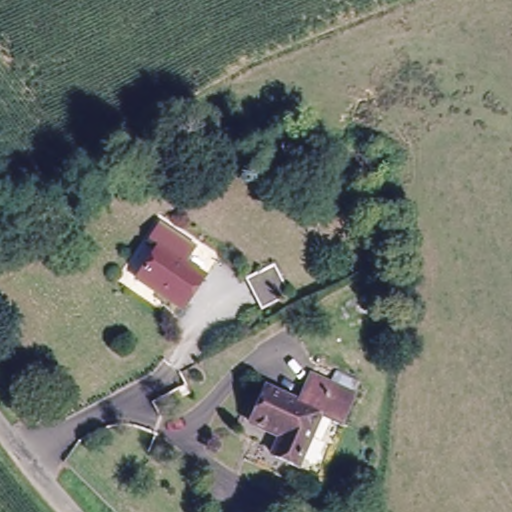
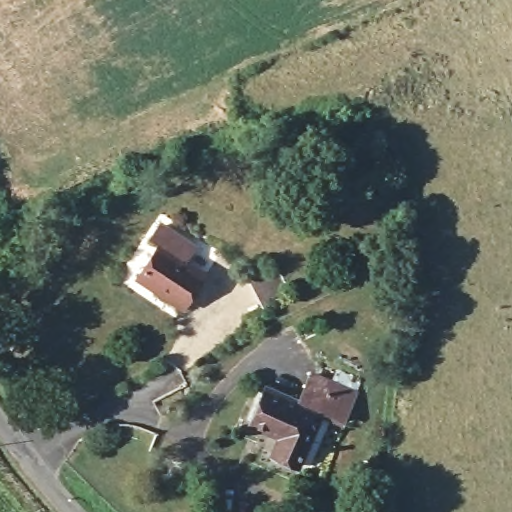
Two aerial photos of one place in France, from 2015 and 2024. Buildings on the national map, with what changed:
unchanged [(157,221),(191,244),(183,258),(206,273),(182,310),(136,277),(157,245),(147,237),(157,221)]
unchanged [(264,312),(250,276),(257,273),(279,264),(293,299),(264,312)]
unchanged [(278,375),(305,390),(316,370),(334,381),(338,373),(362,387),(350,416),(329,403),(301,457),(276,443),(284,426),(256,411),(278,375)]

